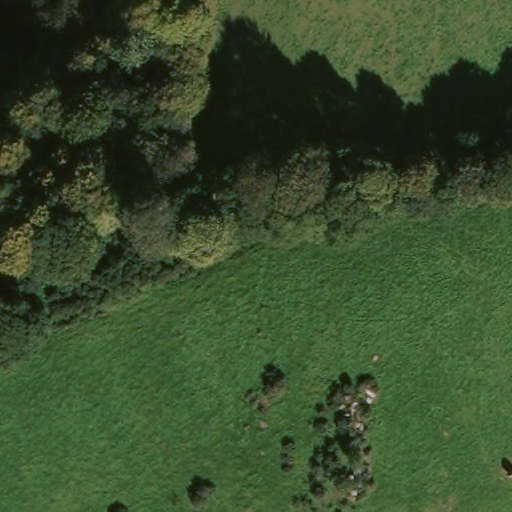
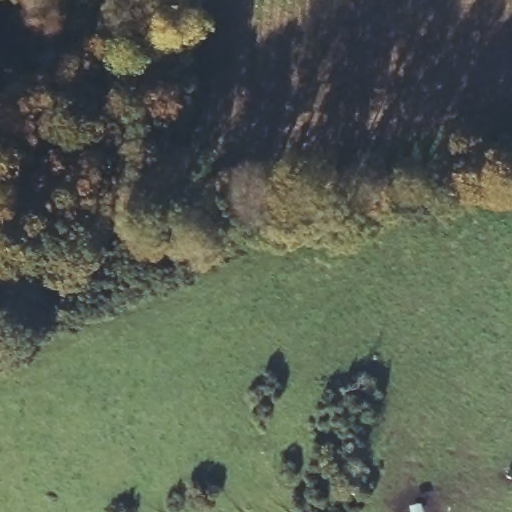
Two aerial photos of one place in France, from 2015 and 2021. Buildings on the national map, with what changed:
[]

